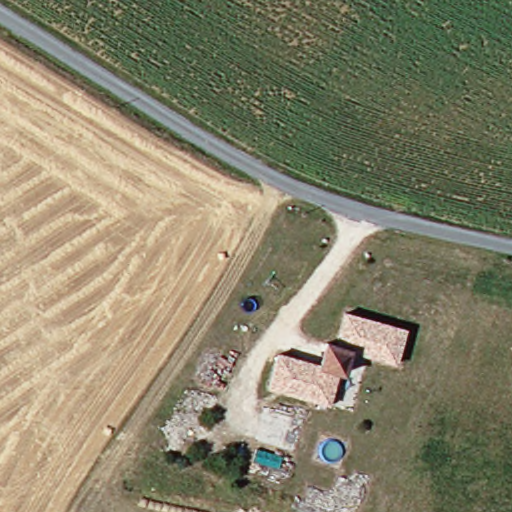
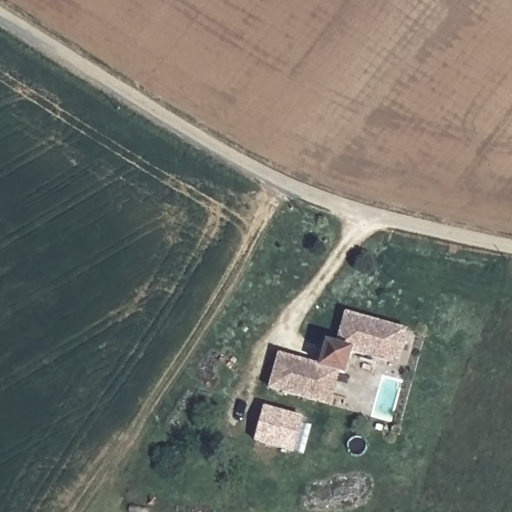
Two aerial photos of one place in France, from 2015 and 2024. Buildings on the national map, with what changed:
unchanged [(322,364),(328,342),(338,344),(347,310),(406,327),(397,361),(351,349),(345,371),(338,370),(330,404),(270,388),(279,354),(322,364)]
new [(303,418),(294,453),(256,442),(265,408),(303,418)]

